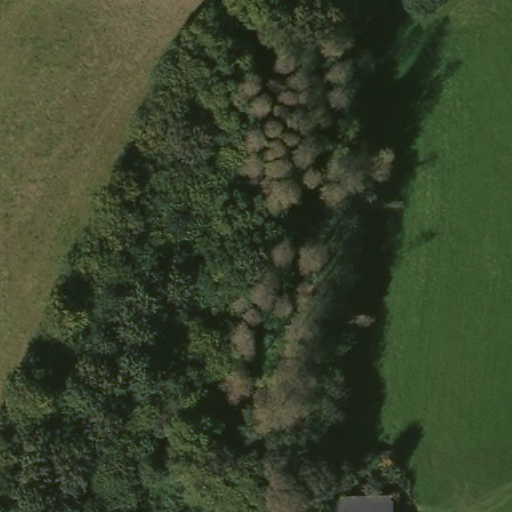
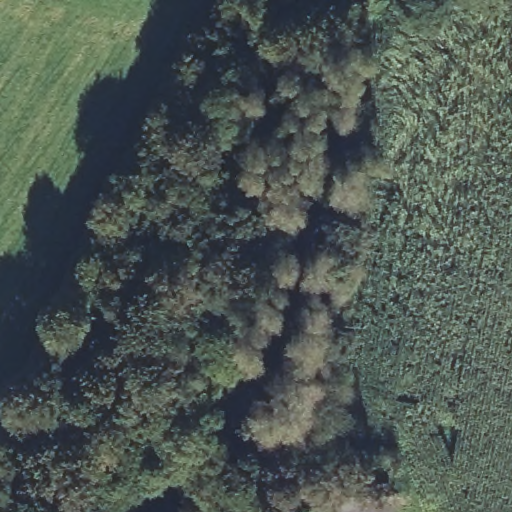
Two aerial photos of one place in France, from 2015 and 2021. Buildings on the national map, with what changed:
unchanged [(314,500),(389,498),(390,512),(314,512),(314,500)]

